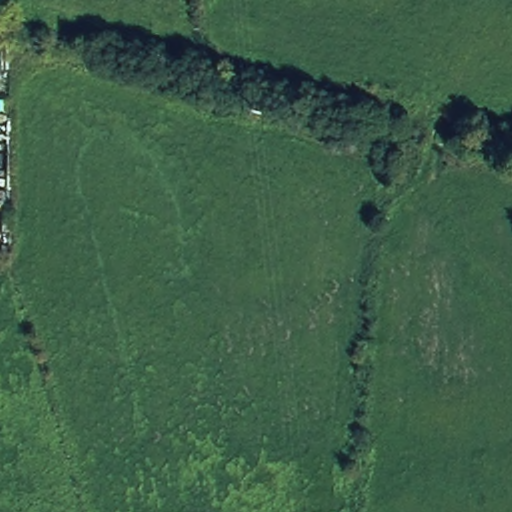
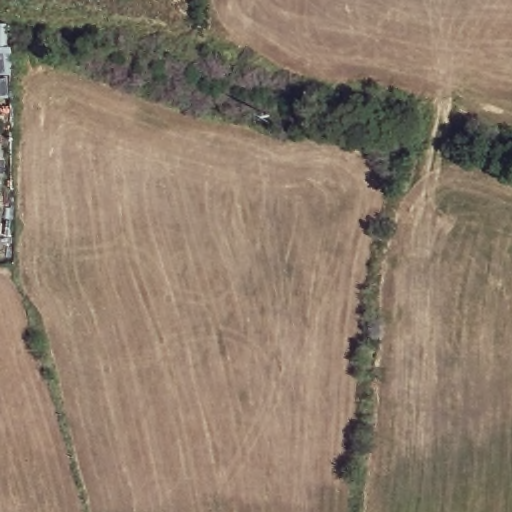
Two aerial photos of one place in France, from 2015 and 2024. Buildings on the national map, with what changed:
unchanged [(4,50),(6,69),(0,70),(0,50),(4,50)]

